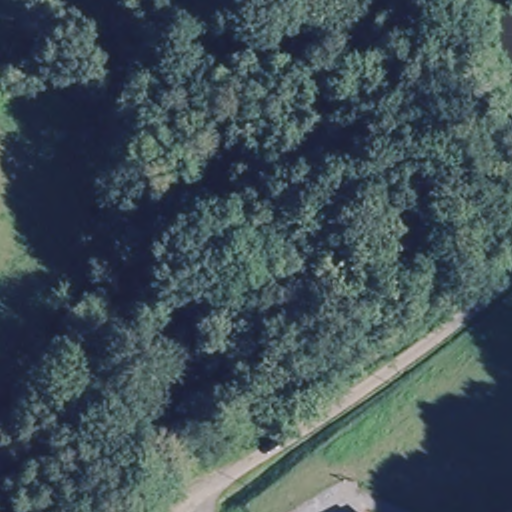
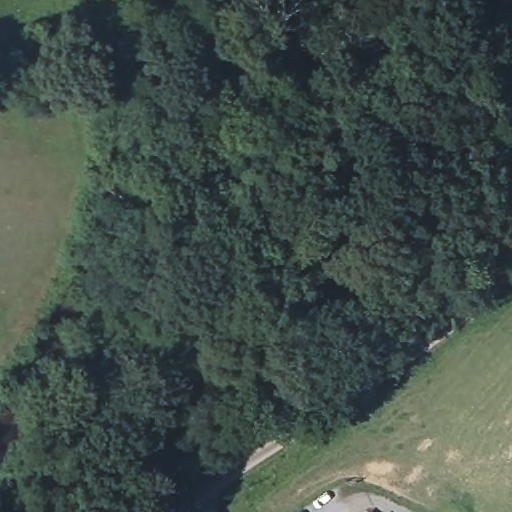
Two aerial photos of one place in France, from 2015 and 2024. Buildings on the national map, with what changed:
[]

